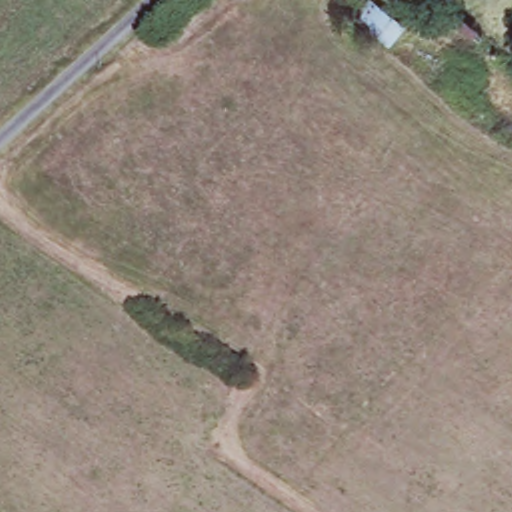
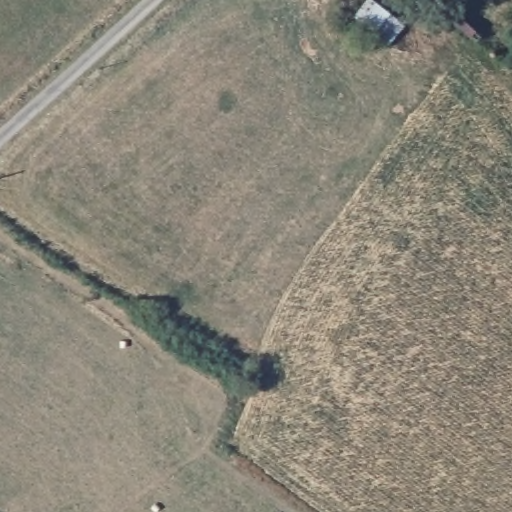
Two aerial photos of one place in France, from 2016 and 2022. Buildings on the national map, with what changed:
unchanged [(367,4),(386,15),(408,30),(393,54),(352,26),(367,4)]

